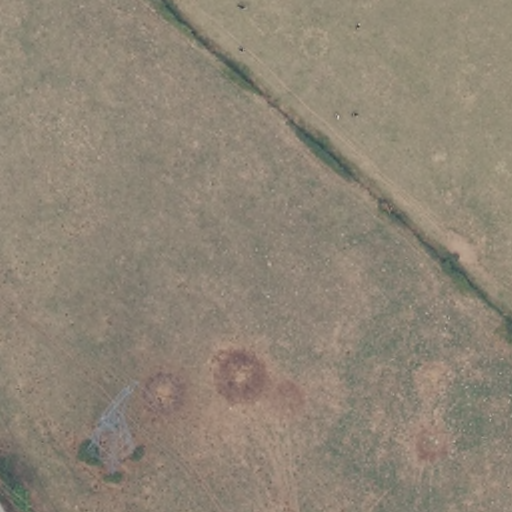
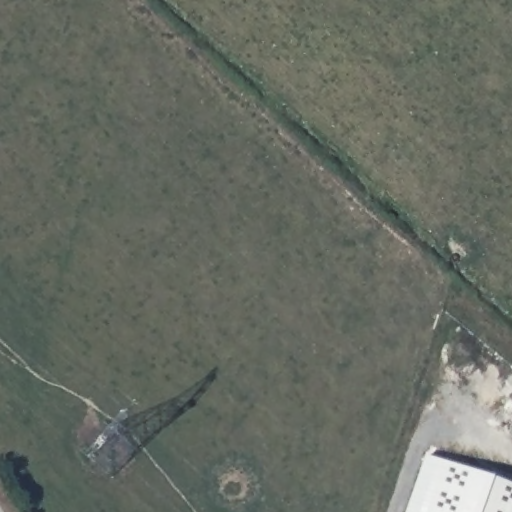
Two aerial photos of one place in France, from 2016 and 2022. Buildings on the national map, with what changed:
new [(512,512),(406,512),(427,455),(512,485),(512,512)]

